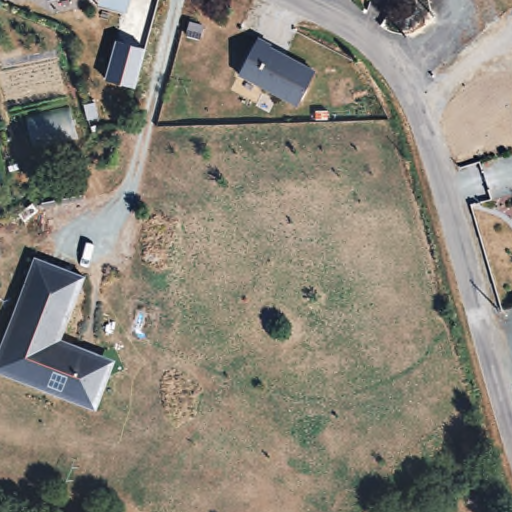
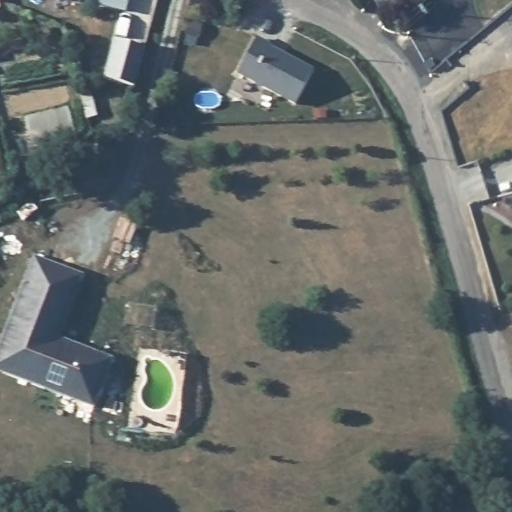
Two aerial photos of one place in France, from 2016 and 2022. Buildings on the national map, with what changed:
unchanged [(49,0),(43,1),(42,0),(52,0),(49,0)]
unchanged [(127,13),(96,4),(97,0),(130,0),(127,13)]
unchanged [(272,43),(271,45),(317,65),(305,93),(303,99),(297,97),(242,74),(258,37),(272,43)]
unchanged [(145,48),(133,88),(104,80),(115,42),(145,48)]
unchanged [(57,338),(93,350),(105,376),(94,406),(0,373),(0,344),(31,257),(80,274),(57,338)]

